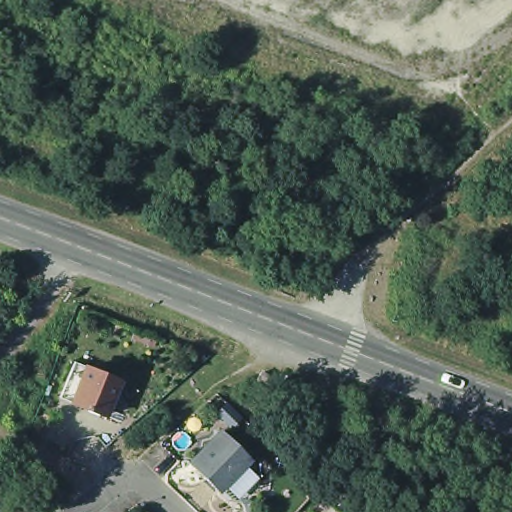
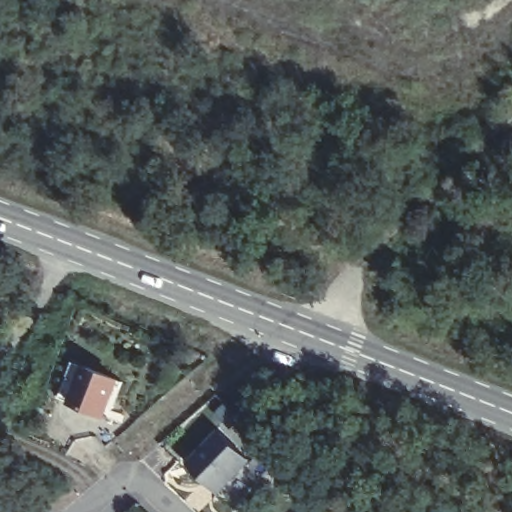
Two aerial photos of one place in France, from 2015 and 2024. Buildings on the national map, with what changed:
unchanged [(62,400),(74,362),(86,366),(123,379),(108,418),(62,400)]
unchanged [(197,472),(225,443),(254,470),(222,503),(210,490),(194,475),(197,472)]

